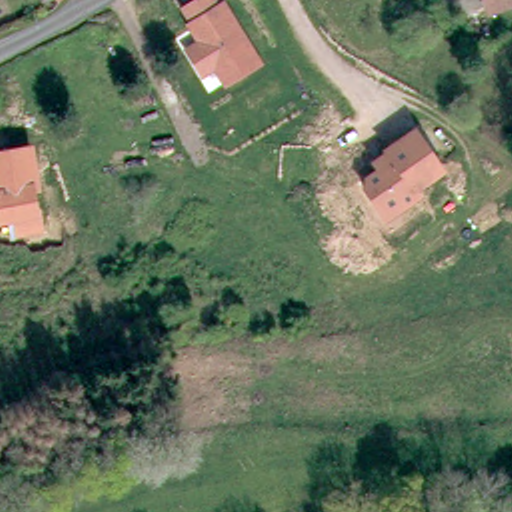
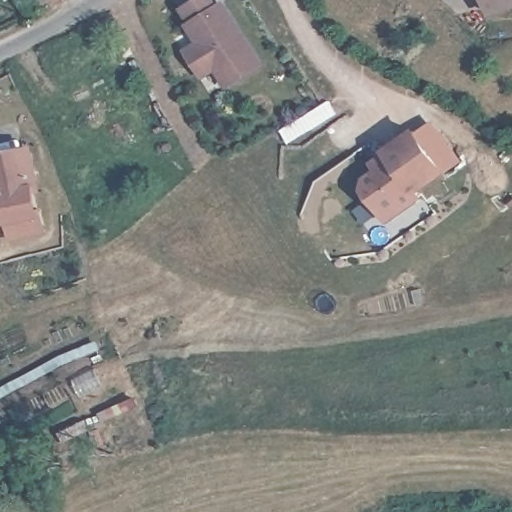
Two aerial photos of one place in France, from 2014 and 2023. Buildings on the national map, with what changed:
unchanged [(219,1),(221,0),(224,0),(264,65),(225,89),(215,71),(202,79),(184,48),(194,41),(184,24),(187,21),(179,6),(189,0),(218,0),(219,1)]
unchanged [(485,19),(479,0),(512,0),(512,9),(485,19)]
unchanged [(136,77),(131,65),(142,60),(147,72),(136,77)]
unchanged [(374,169),(369,161),(383,152),(381,150),(415,127),(444,172),(419,191),(422,197),(385,225),(362,189),(362,175),(374,169)]
unchanged [(38,208),(41,208),(45,235),(16,240),(12,222),(0,224),(0,149),(33,144),(42,192),(36,193),(38,208)]

